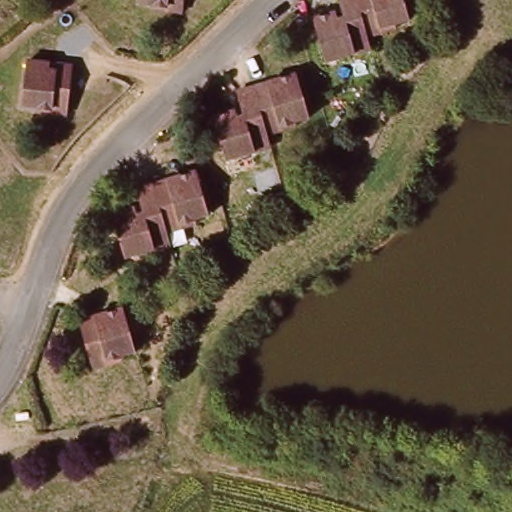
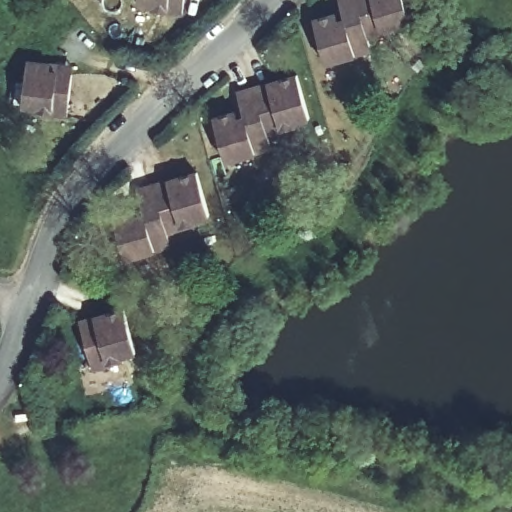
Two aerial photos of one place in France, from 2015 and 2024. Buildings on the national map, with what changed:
unchanged [(153,9),(134,6),(135,0),(181,0),(179,15),(166,15),(153,14),(153,9)]
unchanged [(369,52),(324,66),(311,25),(341,15),(336,0),(353,0),(366,40),(369,52)]
unchanged [(366,40),(353,0),(398,0),(406,22),(392,26),(392,32),(378,36),(366,40)]
unchanged [(38,111),(22,110),(24,64),(57,67),(70,68),(70,76),(68,117),(53,116),(38,115),(38,111)]
unchanged [(286,132),(271,136),(256,87),(299,75),(311,117),(298,121),(300,128),(286,132)]
unchanged [(274,148),(228,161),(216,118),(245,109),(240,92),(256,87),(271,136),(274,148)]
unchanged [(183,231),(168,235),(153,184),(196,171),(209,215),(198,218),(199,227),(183,231)]
unchanged [(169,243),(125,256),(113,215),(142,207),(137,189),(153,184),(168,235),(169,243)]
unchanged [(105,365),(90,370),(78,327),(76,321),(91,317),(118,309),(131,351),(118,355),(119,361),(105,365)]

